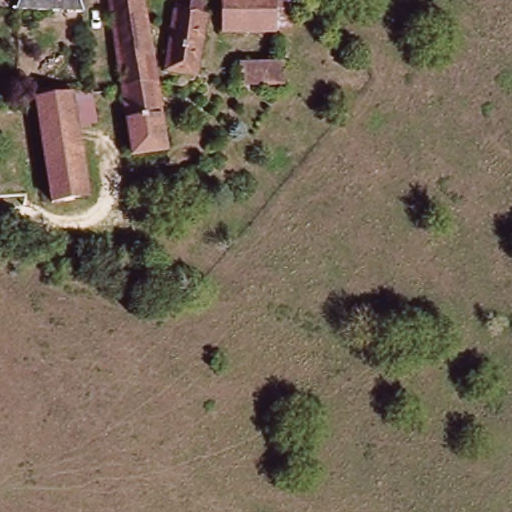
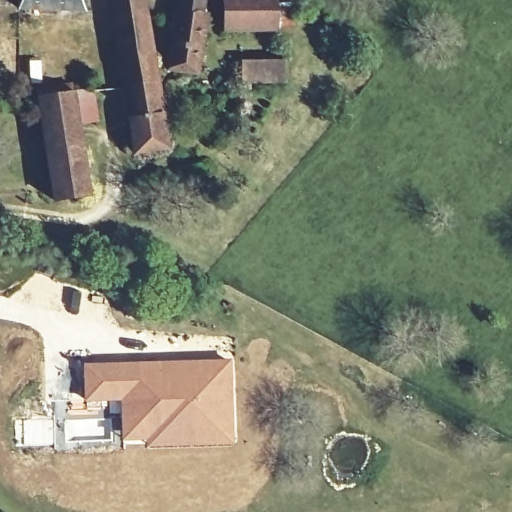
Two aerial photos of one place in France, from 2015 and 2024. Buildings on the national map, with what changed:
unchanged [(21,0),(82,0),(82,6),(21,9),(21,0)]
unchanged [(120,84),(109,0),(145,0),(156,80),(120,84)]
unchanged [(174,2),(174,0),(199,0),(195,73),(168,71),(169,2),(174,2)]
unchanged [(229,0),(281,0),(281,32),(231,31),(229,0)]
unchanged [(283,87),(235,86),(236,65),(283,66),(283,87)]
unchanged [(165,145),(130,151),(120,84),(156,80),(165,145)]
unchanged [(93,130),(75,133),(83,199),(48,204),(36,101),(34,91),(65,87),(68,98),(88,94),(93,130)]
new [(231,359),(234,444),(145,447),(144,444),(122,444),(118,403),(84,402),(83,362),(231,359)]

